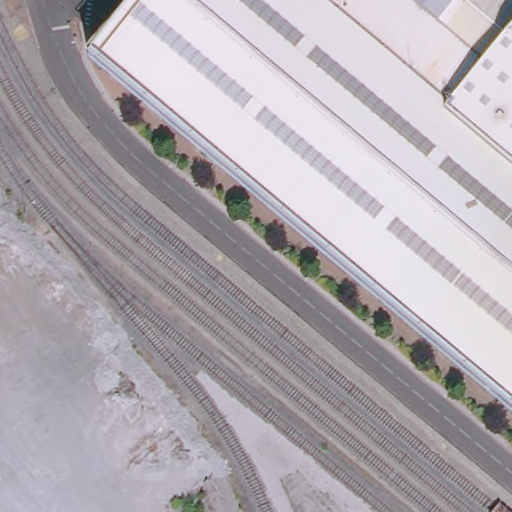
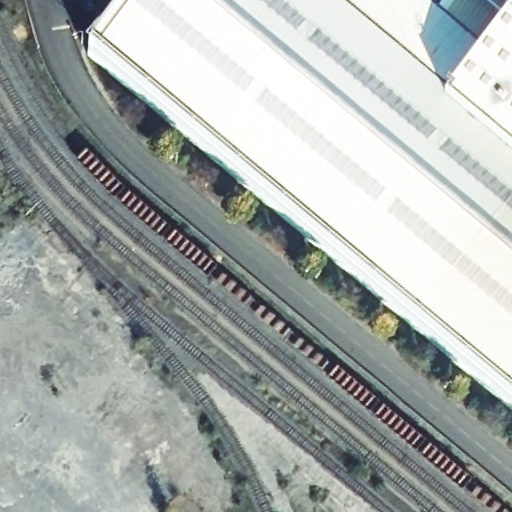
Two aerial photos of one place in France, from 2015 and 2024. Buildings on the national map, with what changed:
unchanged [(158,0),(512,0),(512,390),(113,51),(158,0)]

